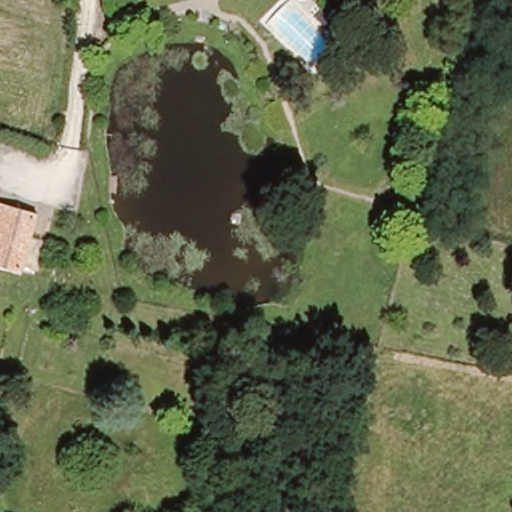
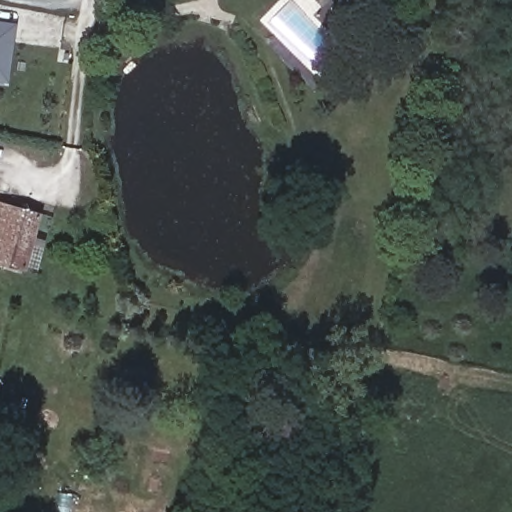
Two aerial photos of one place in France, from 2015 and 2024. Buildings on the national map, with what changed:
new [(6,82),(0,81),(0,21),(16,23),(6,82)]
unchanged [(0,204),(38,215),(22,271),(0,264),(0,204)]

